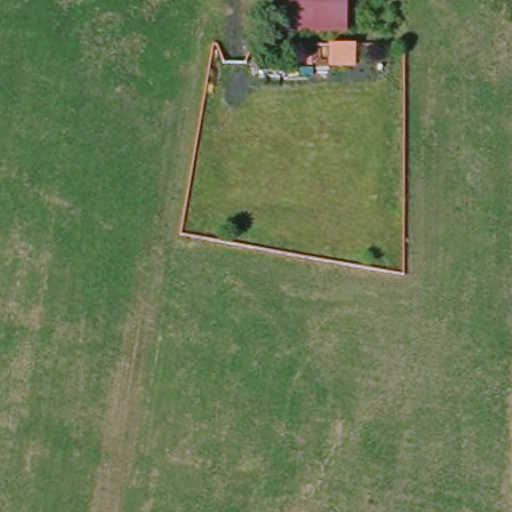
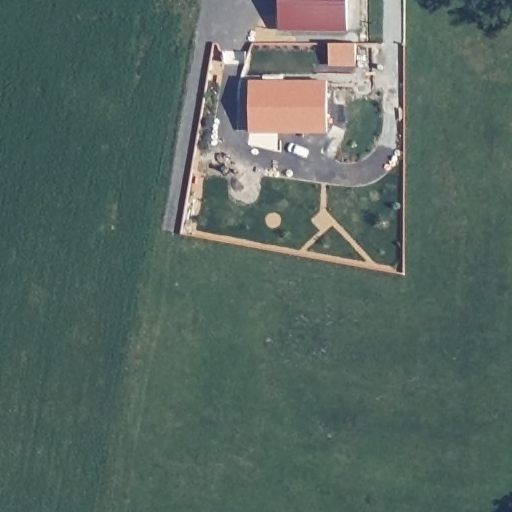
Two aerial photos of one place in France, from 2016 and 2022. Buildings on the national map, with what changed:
unchanged [(346,0),(345,32),(280,30),(281,0),(346,0)]
new [(296,132),(296,122),(281,122),(281,132),(251,131),(251,82),(326,82),(325,132),(296,132)]

